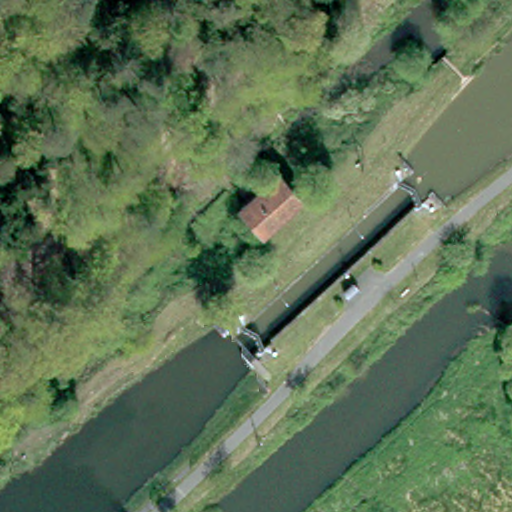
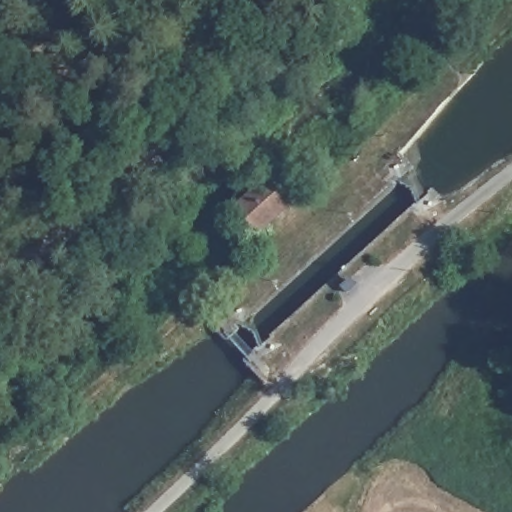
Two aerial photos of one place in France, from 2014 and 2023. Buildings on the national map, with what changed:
unchanged [(264,231),(240,206),(249,197),(237,183),(263,157),(277,171),(300,196),(264,231)]

